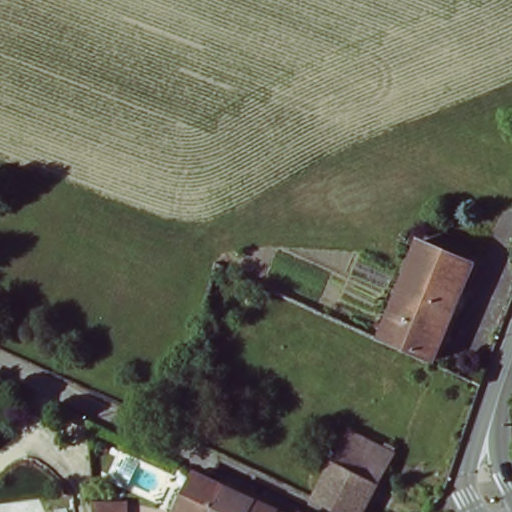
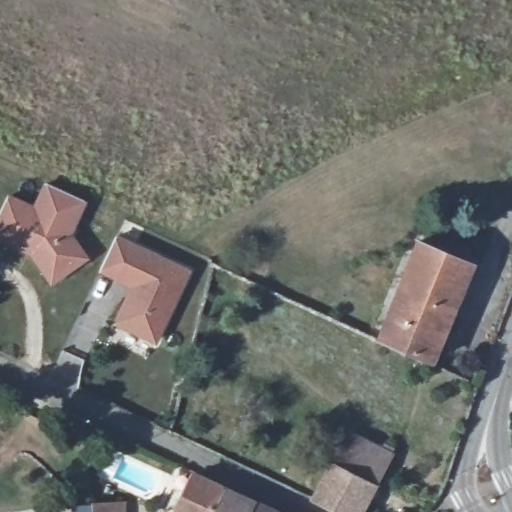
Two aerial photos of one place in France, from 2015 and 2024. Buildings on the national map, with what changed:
new [(29,253),(0,241),(0,211),(8,193),(35,203),(45,182),(88,199),(74,231),(91,258),(51,286),(29,253)]
new [(130,285),(100,271),(117,232),(193,268),(158,343),(114,322),(130,285)]
unchanged [(473,263),(434,359),(380,338),(419,241),(473,263)]
unchanged [(362,512),(338,512),(318,501),(314,499),(349,430),(383,447),(385,443),(392,447),(390,451),(393,452),(362,512)]
unchanged [(176,512),(194,473),(225,487),(213,512),(176,512)]
unchanged [(248,512),(213,512),(225,487),(254,501),(248,512)]
unchanged [(248,512),(254,501),(277,512),(248,512)]
unchanged [(100,512),(100,508),(129,507),(129,512),(100,512)]

